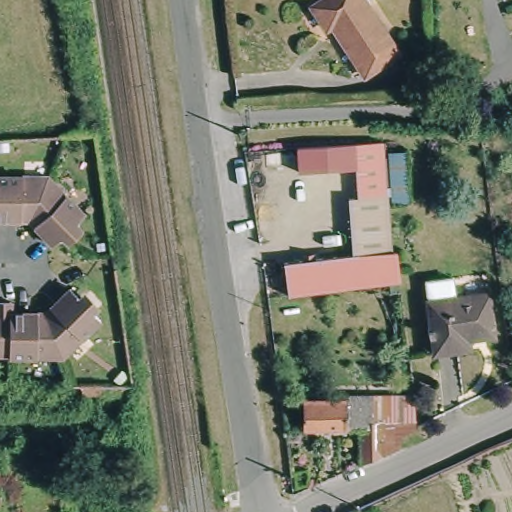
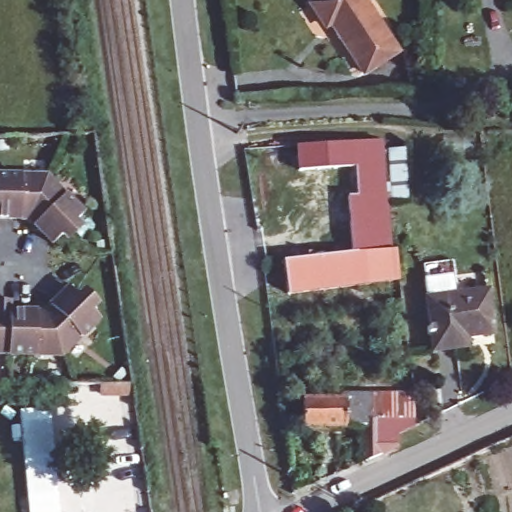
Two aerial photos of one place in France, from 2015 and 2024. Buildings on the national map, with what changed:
unchanged [(403,46),(369,71),(320,2),(322,0),(368,0),(403,46)]
unchanged [(278,259),(353,250),(347,192),(355,191),(352,160),(292,161),(293,134),(384,134),(385,148),(404,146),(410,197),(392,199),(403,277),(282,292),(278,259)]
unchanged [(47,177),(79,209),(50,238),(27,214),(0,213),(0,176),(47,177)]
unchanged [(74,287),(97,313),(50,312),(37,312),(0,311),(0,299),(13,299),(13,310),(48,310),(74,287)]
unchanged [(499,289),(504,332),(462,338),(464,346),(437,349),(431,298),(499,289)]
unchanged [(103,319),(65,353),(0,351),(0,311),(37,312),(50,312),(97,313),(103,319)]
unchanged [(327,397),(327,393),(342,392),(342,396),(354,396),(354,393),(394,390),(394,387),(418,385),(421,429),(405,436),(405,442),(381,454),(369,460),(366,423),(312,425),(310,399),(327,397)]
new [(50,407),(60,512),(29,512),(19,410),(50,407)]

